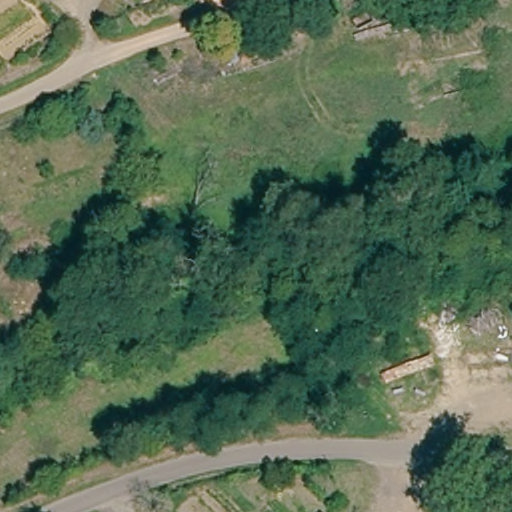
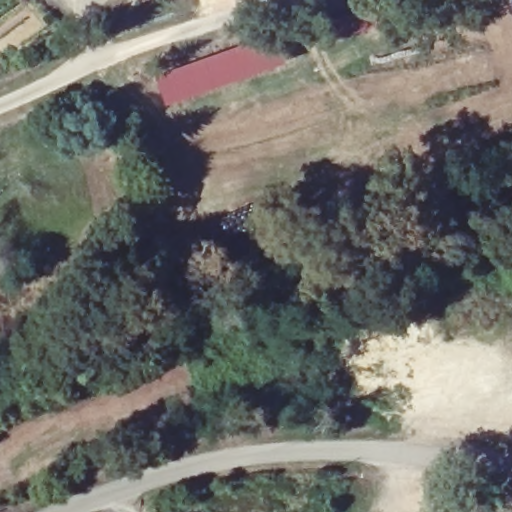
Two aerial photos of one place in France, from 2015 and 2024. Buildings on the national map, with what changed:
new [(168,106),(157,76),(276,32),(287,62),(168,106)]
demolished [(26,240),(6,246),(0,232),(0,220),(19,215),(26,240)]

